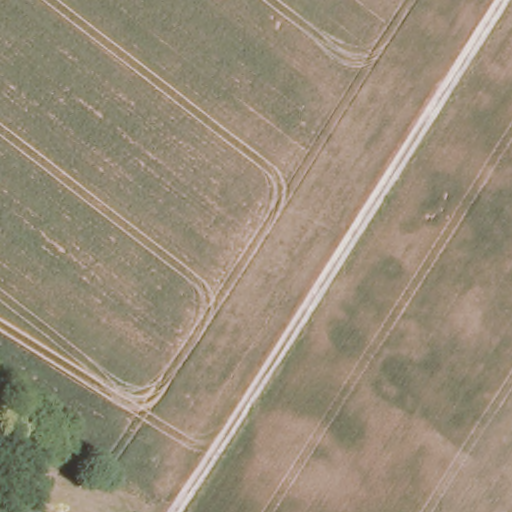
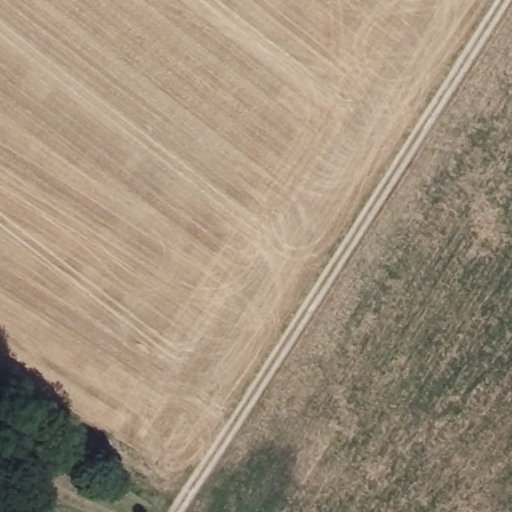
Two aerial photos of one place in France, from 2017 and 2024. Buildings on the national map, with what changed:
unchanged [(29,512),(20,512),(22,509),(29,512)]

